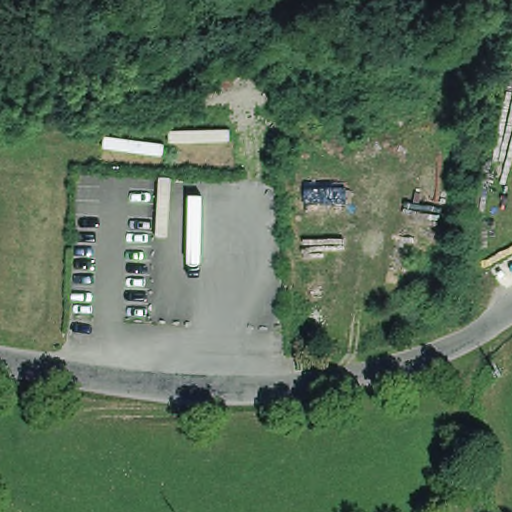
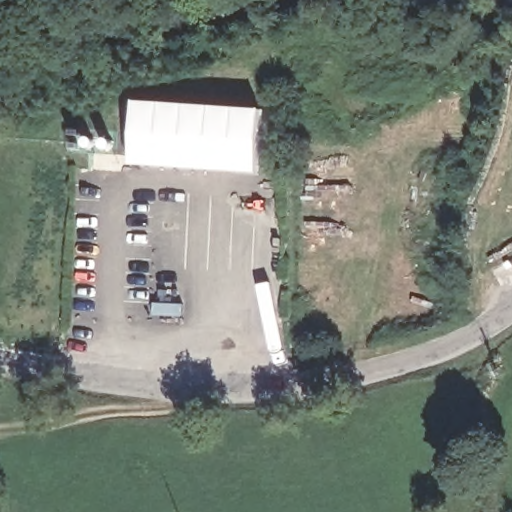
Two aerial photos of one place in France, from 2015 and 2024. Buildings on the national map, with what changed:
new [(268,112),(265,172),(129,169),(137,102),(268,112)]

